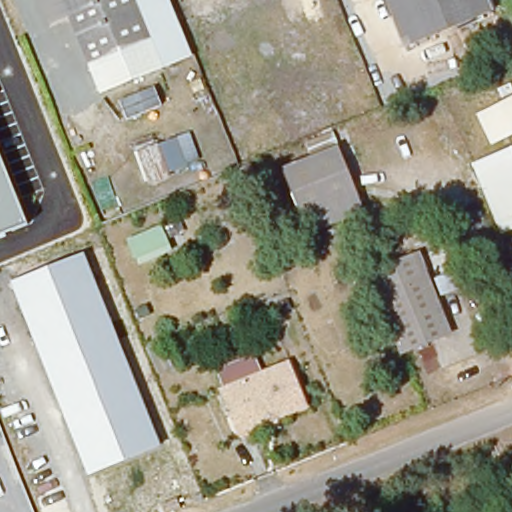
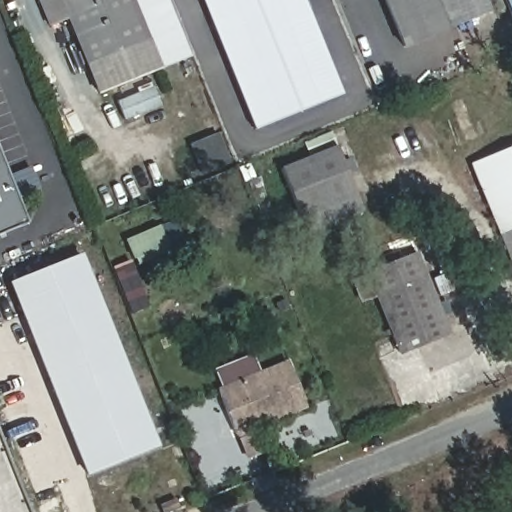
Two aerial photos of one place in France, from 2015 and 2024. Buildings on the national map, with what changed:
unchanged [(151,14),(153,35),(85,61),(79,64),(71,39),(77,36),(70,18),(51,24),(40,0),(173,0),(174,2),(151,14)]
demolished [(179,0),(217,0),(220,8),(188,21),(179,0)]
new [(255,131),(203,0),(306,0),(344,94),(255,131)]
unchanged [(396,0),(495,0),(496,3),(414,41),(396,0)]
new [(512,0),(512,14),(506,0),(512,0)]
unchanged [(153,35),(151,14),(174,2),(192,56),(98,95),(85,61),(153,35)]
demolished [(476,113),(512,96),(512,135),(489,146),(476,113)]
demolished [(143,183),(133,154),(177,139),(186,168),(143,183)]
unchanged [(310,234),(283,170),(341,144),(370,208),(310,234)]
unchanged [(512,253),(472,161),(512,144),(512,253)]
unchanged [(0,234),(0,158),(26,224),(0,234)]
unchanged [(134,253),(127,237),(158,224),(164,240),(134,253)]
unchanged [(405,350),(372,272),(419,250),(450,328),(405,350)]
unchanged [(87,475),(10,282),(85,254),(160,446),(87,475)]
new [(468,265),(474,282),(443,294),(436,279),(468,265)]
unchanged [(219,391),(223,389),(215,369),(254,354),(262,372),(289,359),(305,402),(236,431),(219,391)]

